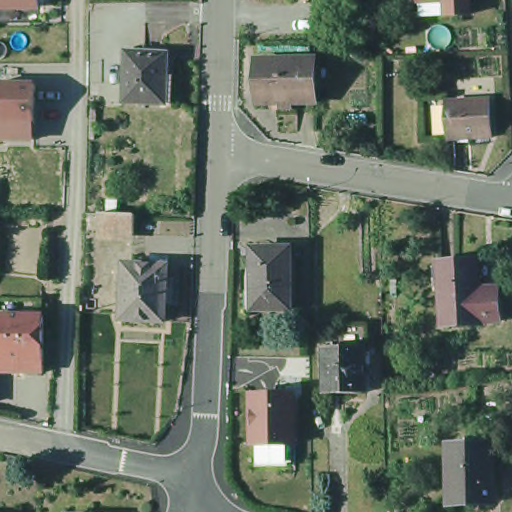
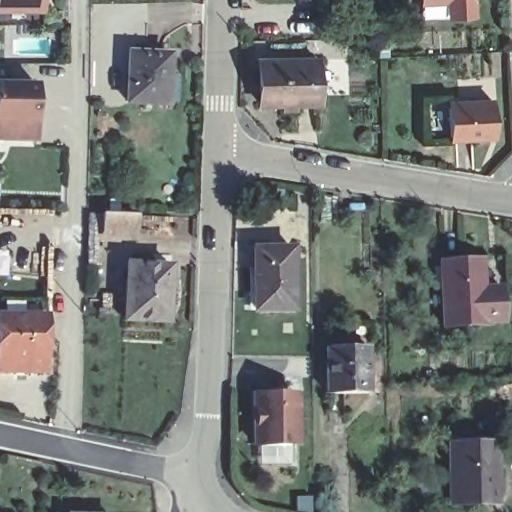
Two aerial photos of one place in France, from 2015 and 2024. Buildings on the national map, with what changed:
unchanged [(42,10),(0,10),(0,0),(42,0),(42,10)]
unchanged [(468,5),(453,6),(417,7),(417,0),(468,0),(468,5)]
unchanged [(176,110),(163,109),(128,107),(130,58),(170,60),(170,77),(177,77),(176,110)]
unchanged [(318,61),(318,104),(310,104),(261,104),(260,62),(310,61),(318,61)]
unchanged [(35,142),(0,140),(0,82),(37,85),(35,142)]
unchanged [(492,105),(495,142),(452,145),(450,107),(492,105)]
unchanged [(137,236),(102,234),(103,214),(138,216),(137,236)]
unchanged [(261,250),(300,249),(300,311),(261,311),(255,311),(255,279),(261,279),(261,250)]
unchanged [(476,260),(477,261),(479,288),(495,287),(497,321),(480,322),(480,325),(440,327),(438,262),(476,260)]
unchanged [(177,306),(170,306),(168,322),(125,321),(125,315),(127,265),(171,267),(170,290),(177,290),(177,306)]
unchanged [(12,315),(22,315),(22,321),(42,322),(42,367),(41,379),(0,379),(0,321),(12,321),(12,315)]
unchanged [(359,352),(360,397),(319,397),(318,353),(359,352)]
unchanged [(292,390),(292,441),(253,442),(255,389),(292,390)]
unchanged [(495,447),(495,506),(451,506),(450,447),(495,447)]

